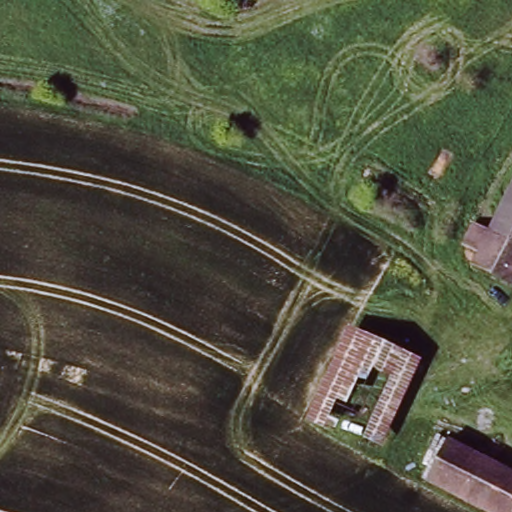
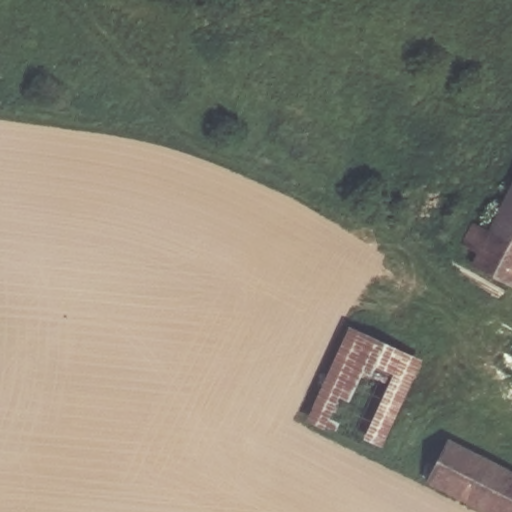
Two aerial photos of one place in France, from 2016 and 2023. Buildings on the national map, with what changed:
unchanged [(473,265),(484,250),(469,244),(479,221),(494,229),(512,190),(512,287),(473,265)]
unchanged [(384,452),(309,417),(352,323),(429,357),(384,452)]
unchanged [(512,468),(512,512),(500,512),(477,500),(471,511),(452,500),(457,490),(433,476),(455,438),(512,468)]

